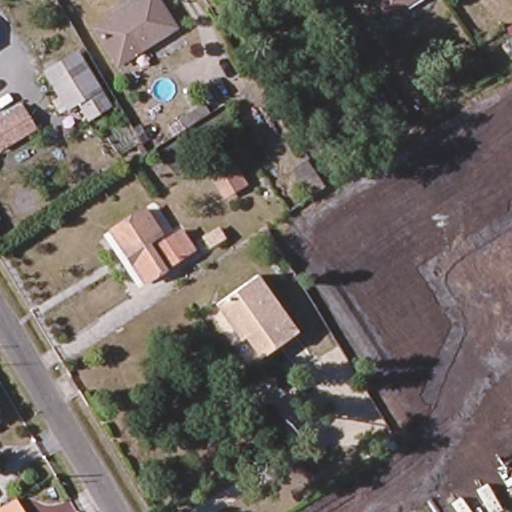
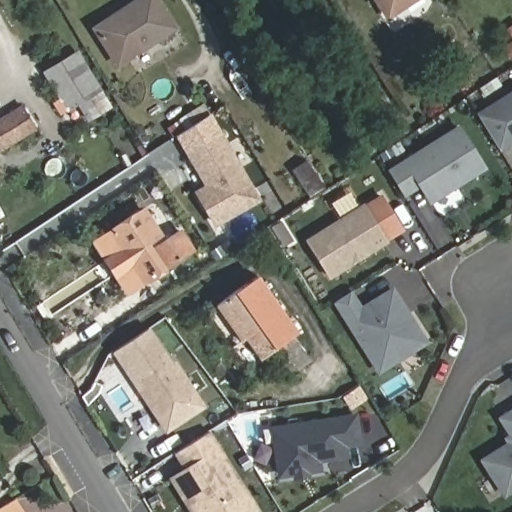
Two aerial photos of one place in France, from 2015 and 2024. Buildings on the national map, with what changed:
unchanged [(157,0),(174,28),(116,65),(93,28),(137,0),(157,0)]
unchanged [(417,19),(411,10),(396,20),(383,0),(426,0),(432,9),(417,19)]
unchanged [(108,106),(87,119),(77,101),(65,109),(44,74),(77,54),(108,106)]
new [(501,151),(477,111),(512,90),(512,143),(501,151)]
unchanged [(37,130),(0,152),(0,117),(22,104),(37,130)]
new [(429,203),(419,188),(404,197),(387,167),(459,124),(488,169),(429,203)]
new [(216,224),(198,193),(210,186),(189,151),(219,134),(257,199),(216,224)]
new [(310,160),(329,188),(315,197),(297,169),(310,160)]
demolished [(233,161),(249,189),(229,201),(213,174),(233,161)]
new [(333,277),(309,238),(368,202),(384,195),(408,230),(393,242),(333,277)]
unchanged [(159,233),(145,243),(151,252),(179,233),(191,250),(144,282),(110,232),(144,210),(159,233)]
unchanged [(209,248),(203,238),(218,228),(224,238),(209,248)]
unchanged [(297,337),(264,360),(247,335),(237,343),(214,310),(257,280),(297,337)]
new [(393,285),(429,343),(377,375),(333,304),(353,292),(361,305),(393,285)]
new [(179,421),(172,409),(158,418),(114,351),(149,329),(173,365),(175,364),(203,405),(179,421)]
new [(504,497),(480,459),(507,444),(503,438),(509,434),(498,416),(512,408),(512,492),(504,497)]
new [(347,447),(349,457),(320,461),(322,472),(307,474),(308,477),(292,479),(292,475),(278,478),(270,426),(358,413),(363,445),(347,447)]
new [(260,512),(189,512),(168,478),(184,468),(174,453),(210,431),(260,512)]

